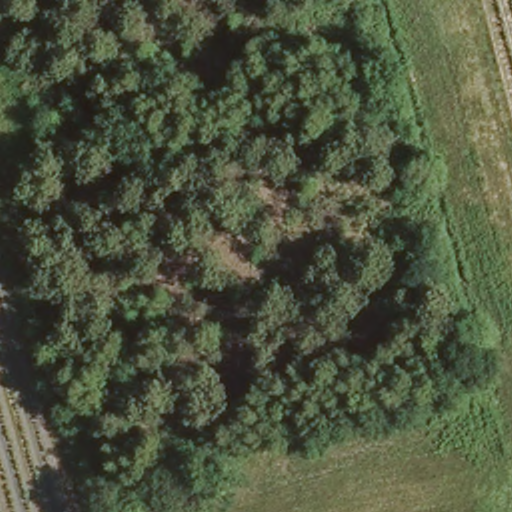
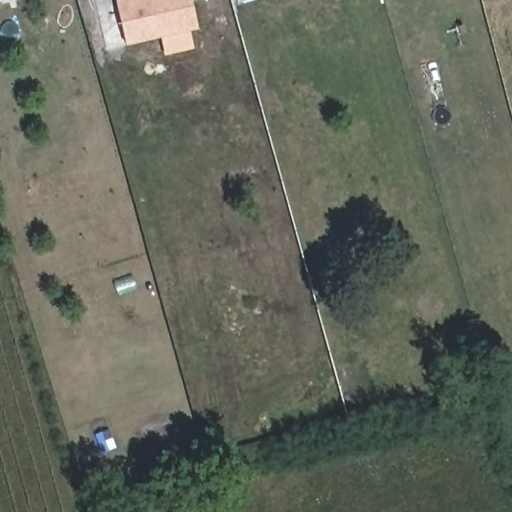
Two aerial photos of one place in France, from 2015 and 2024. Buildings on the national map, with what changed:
new [(196,25),(125,41),(115,0),(191,0),(196,25)]

